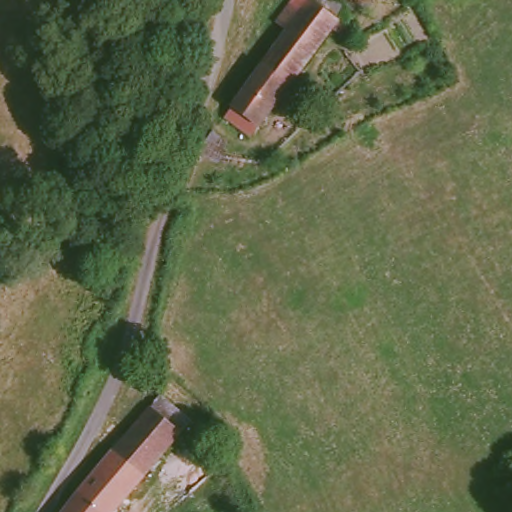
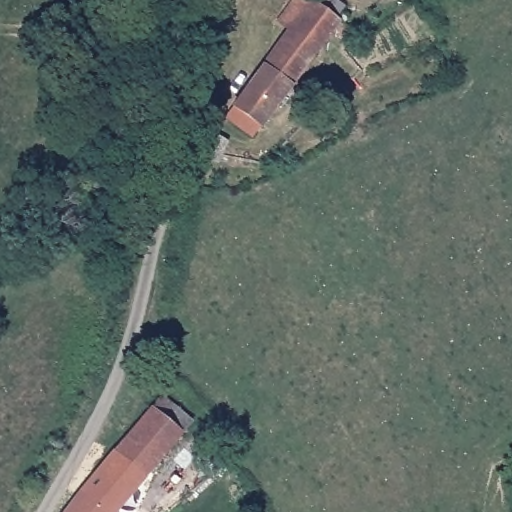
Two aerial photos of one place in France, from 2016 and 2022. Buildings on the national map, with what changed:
unchanged [(357,38),(335,22),(253,131),(227,109),(292,24),(279,13),(289,0),(324,0),(365,29),(357,38)]
unchanged [(221,142),(217,157),(204,158),(210,136),(221,142)]
unchanged [(156,394),(186,419),(108,512),(62,512),(156,394)]

